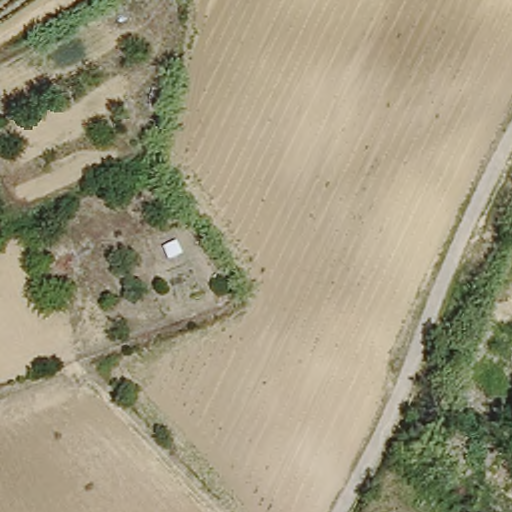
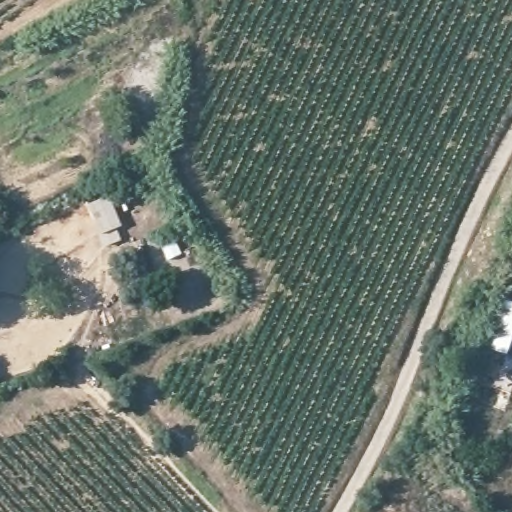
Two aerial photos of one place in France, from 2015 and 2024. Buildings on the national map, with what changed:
new [(109,195),(123,225),(118,228),(123,239),(105,247),(99,235),(101,233),(88,204),(109,195)]

